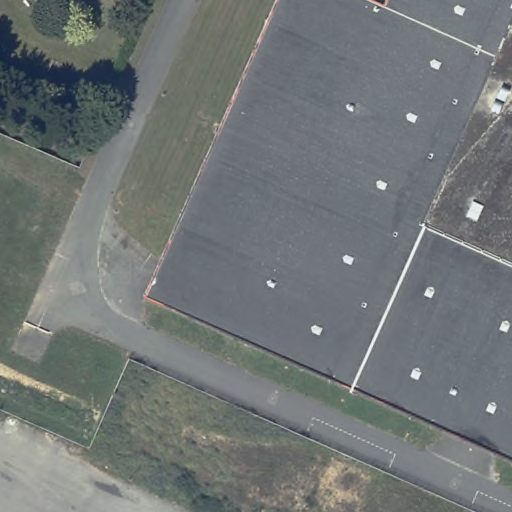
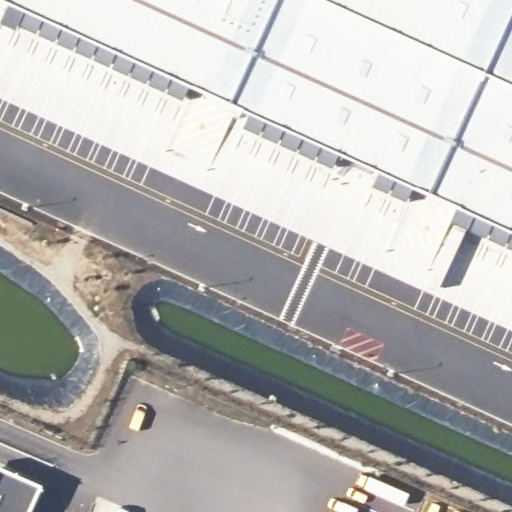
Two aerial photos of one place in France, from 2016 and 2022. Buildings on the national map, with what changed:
demolished [(76,2),(72,0),(77,0),(76,2)]
demolished [(185,219),(193,203),(205,176),(284,0),(366,0),(386,9),(390,0),(512,0),(512,365),(505,361),(479,350),(437,331),(408,318),(389,309),(381,306),(349,292),(323,280),(277,260),(238,243),(185,219)]
new [(512,233),(426,194),(483,70),(512,9),(512,233)]
demolished [(150,297),(185,219),(238,243),(277,260),(323,280),(349,292),(381,306),(389,309),(408,318),(437,331),(479,350),(505,361),(512,365),(512,460),(446,430),(150,297)]
new [(42,486),(31,512),(0,512),(0,468),(42,486)]

